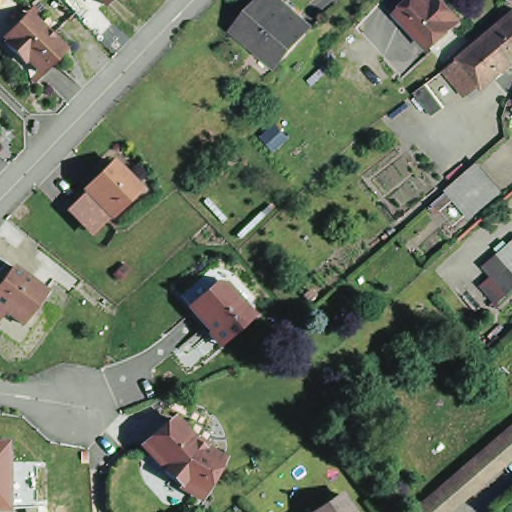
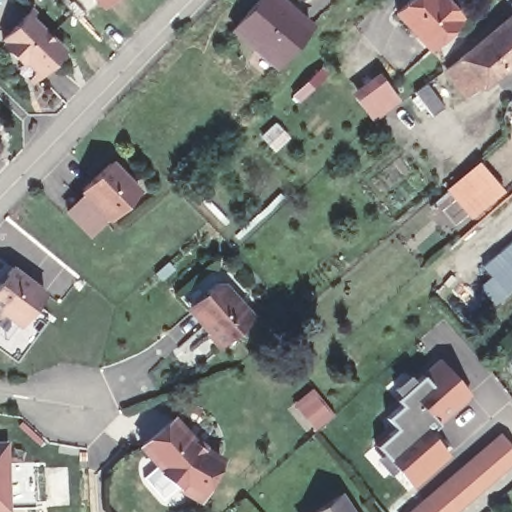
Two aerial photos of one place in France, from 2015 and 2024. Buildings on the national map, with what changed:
unchanged [(97,0),(110,0),(103,7),(97,0)]
unchanged [(259,0),(279,0),(311,27),(277,65),(234,29),(259,0)]
unchanged [(409,22),(397,10),(408,0),(442,0),(459,19),(429,46),(424,50),(404,27),(409,22)]
unchanged [(29,9),(65,47),(36,74),(0,38),(0,34),(29,9)]
unchanged [(512,27),(512,67),(506,72),(504,69),(472,95),(469,92),(456,104),(435,78),(449,67),(507,20),(512,27)]
new [(372,122),(351,93),(379,74),(399,102),(372,122)]
unchanged [(421,85),(439,107),(427,116),(409,94),(421,85)]
unchanged [(106,217),(80,190),(110,161),(134,189),(106,217)]
unchanged [(499,189),(470,214),(459,200),(448,187),(477,162),(488,176),(499,189)]
unchanged [(496,251),(507,241),(512,237),(512,285),(504,292),(481,263),(489,256),(496,251)]
unchanged [(8,261),(48,289),(23,320),(3,310),(0,316),(0,274),(8,261)]
unchanged [(184,304),(221,273),(253,315),(218,345),(184,304)]
new [(386,416),(401,403),(396,397),(441,359),(471,394),(439,421),(439,422),(438,424),(430,415),(421,422),(449,455),(413,485),(399,470),(398,470),(376,444),(395,427),(386,416)]
new [(335,417),(317,431),(294,405),(314,388),(335,417)]
unchanged [(174,485),(138,443),(174,415),(194,438),(222,453),(201,497),(174,485)]
unchanged [(419,512),(512,432),(512,464),(456,512),(419,512)]
unchanged [(6,437),(6,505),(0,505),(0,437),(6,437)]
unchanged [(349,512),(322,512),(341,500),(349,512)]

